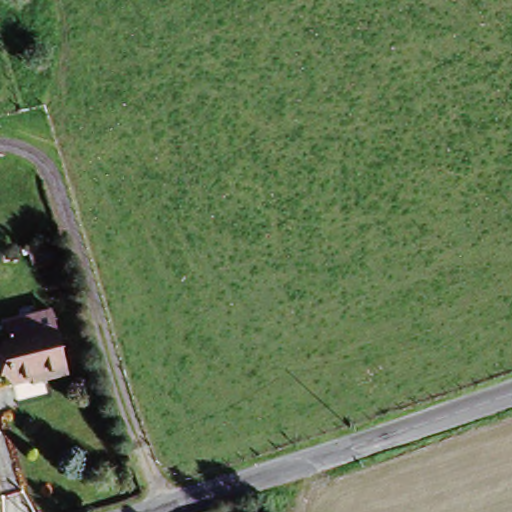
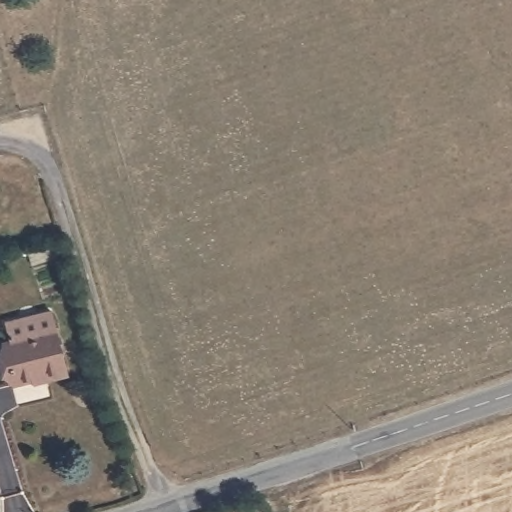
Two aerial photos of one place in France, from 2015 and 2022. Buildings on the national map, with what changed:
unchanged [(32,265),(27,250),(53,242),(59,257),(32,265)]
unchanged [(8,322),(50,312),(56,337),(14,346),(8,322)]
unchanged [(46,385),(46,382),(14,390),(3,348),(14,346),(56,337),(67,380),(46,385)]

